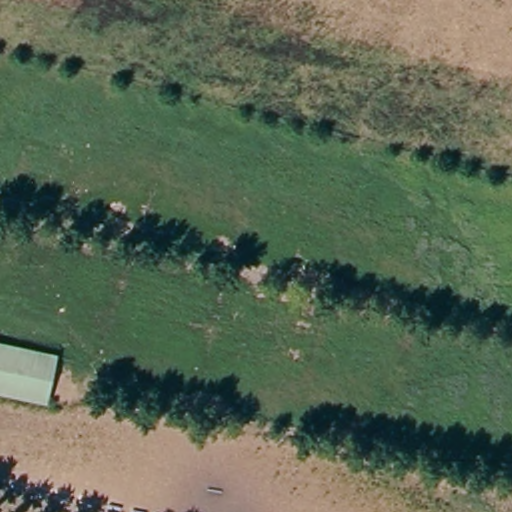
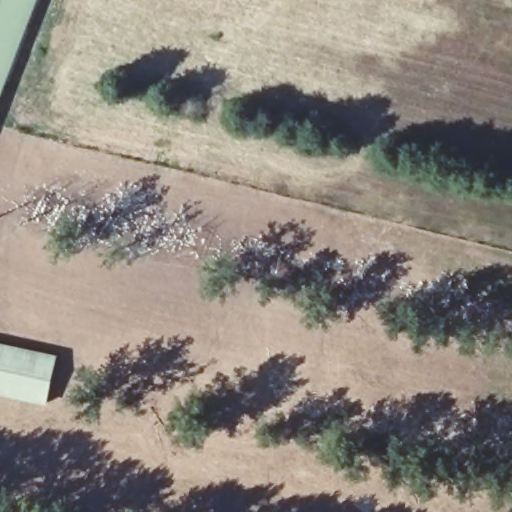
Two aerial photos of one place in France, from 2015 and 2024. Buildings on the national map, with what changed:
new [(0,0),(38,0),(0,100),(0,0)]
unchanged [(0,343),(58,356),(47,405),(0,394),(0,343)]

